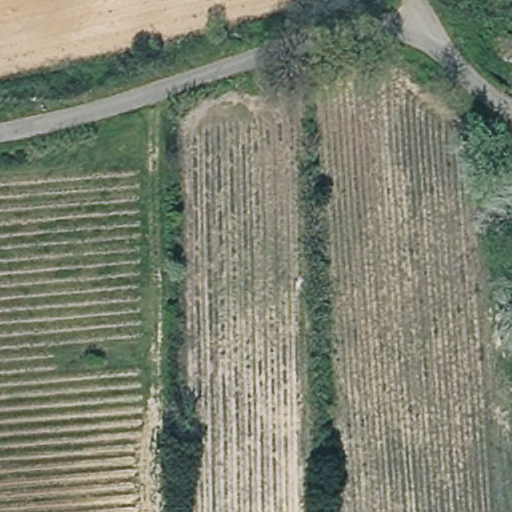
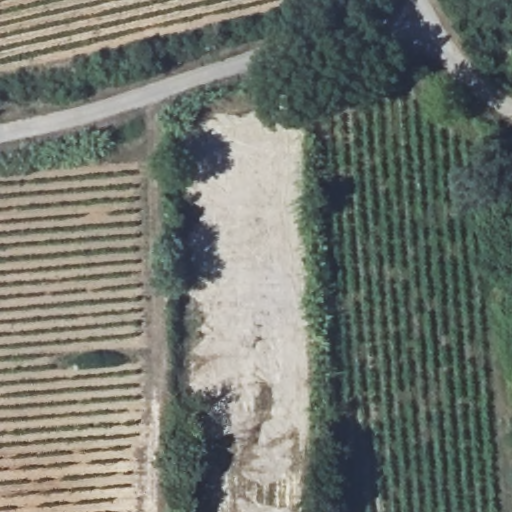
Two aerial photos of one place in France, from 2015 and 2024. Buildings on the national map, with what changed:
unchanged [(503,39),(512,32),(512,57),(503,57),(503,39)]

